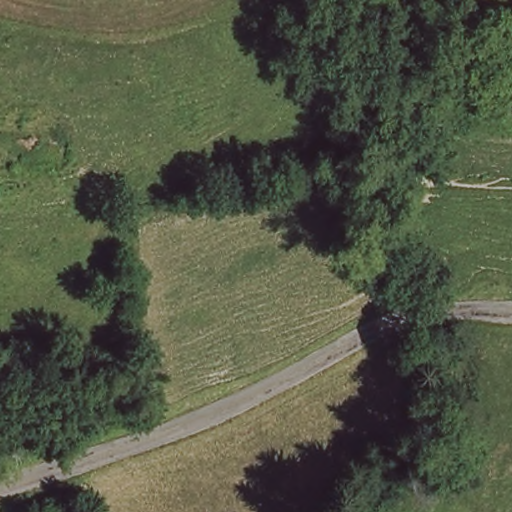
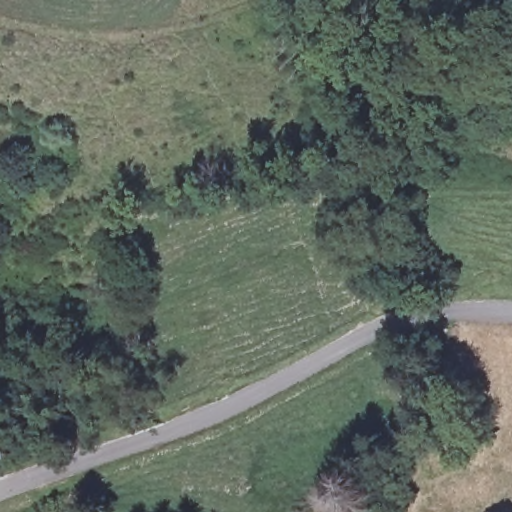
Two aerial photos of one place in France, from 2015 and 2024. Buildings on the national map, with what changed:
[]

